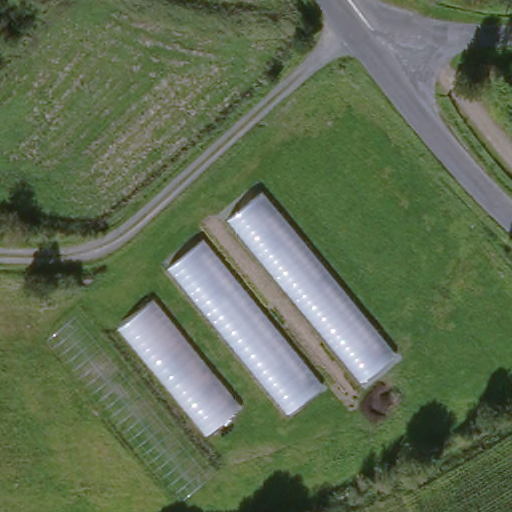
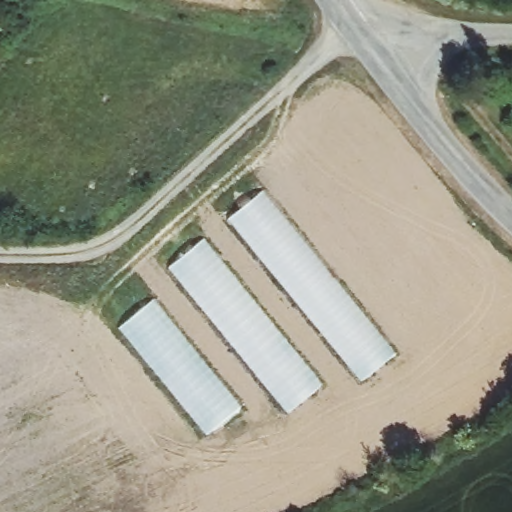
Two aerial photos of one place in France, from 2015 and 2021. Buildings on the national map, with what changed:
unchanged [(227,217),(264,190),(397,353),(361,381),(227,217)]
unchanged [(168,265),(206,236),(324,385),(289,412),(168,265)]
unchanged [(118,325),(154,295),(244,405),(208,434),(118,325)]

